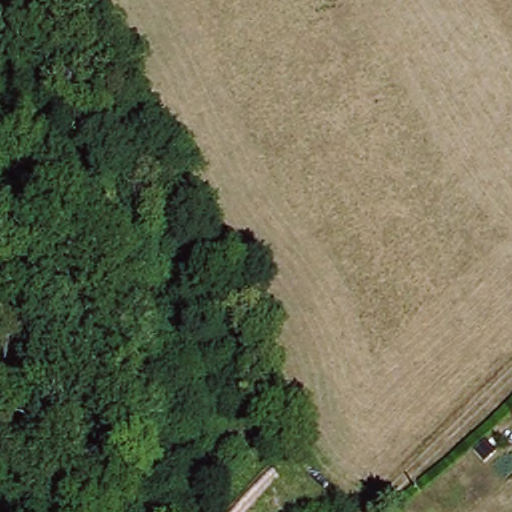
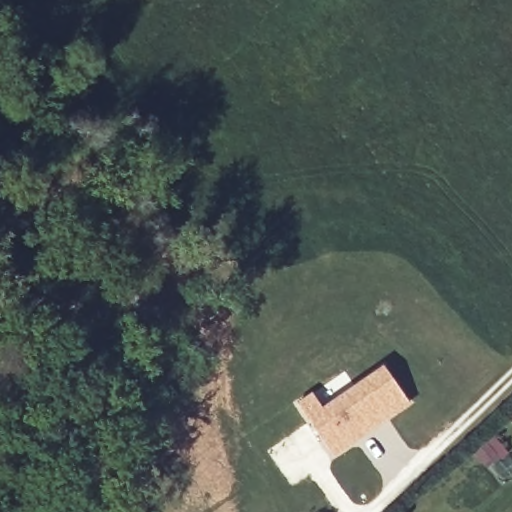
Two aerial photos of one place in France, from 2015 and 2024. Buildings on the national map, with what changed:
new [(311,389),(321,404),(382,362),(411,403),(333,456),(292,402),(311,389)]
new [(492,434),(508,452),(487,469),(471,452),(492,434)]

